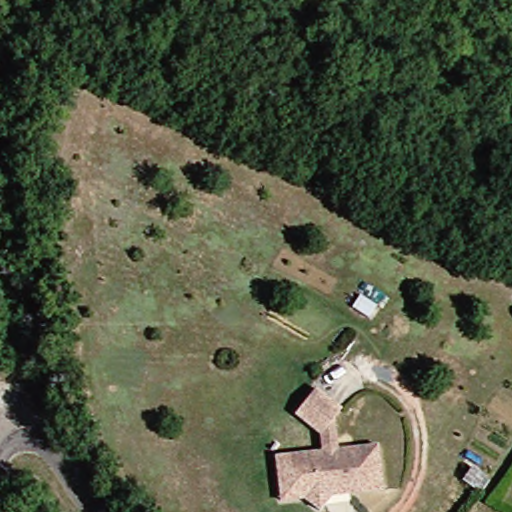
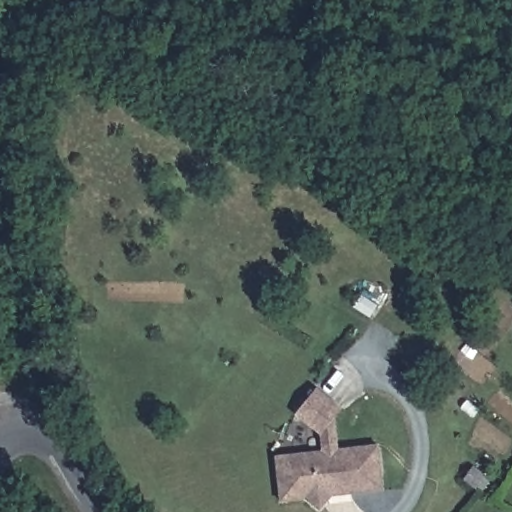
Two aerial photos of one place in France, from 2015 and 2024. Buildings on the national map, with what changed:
unchanged [(286,455),(326,452),(327,438),(299,417),(323,389),(349,409),(338,422),(340,451),(385,447),(390,493),(351,497),(345,490),(324,491),(318,499),(290,501),(286,455)]

